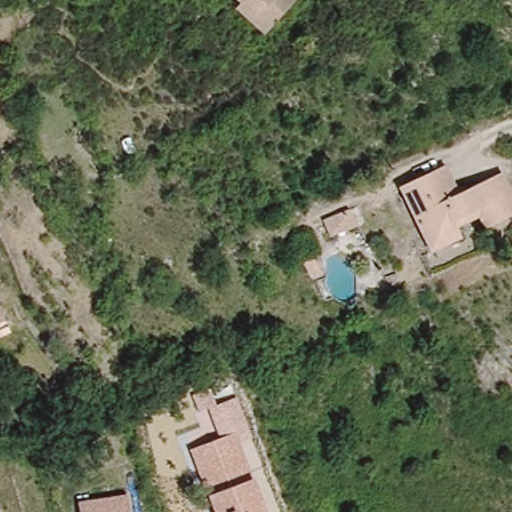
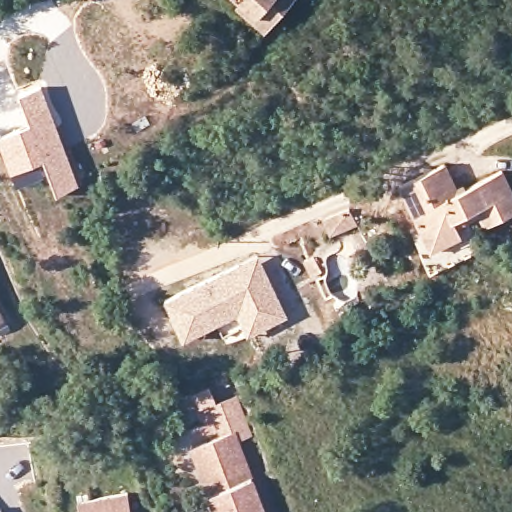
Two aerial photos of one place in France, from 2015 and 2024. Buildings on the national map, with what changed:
unchanged [(270,31),(239,0),(298,0),(270,31)]
new [(78,185),(56,194),(47,171),(15,184),(0,147),(0,135),(28,124),(16,95),(38,86),(78,185)]
unchanged [(424,214),(421,208),(411,212),(397,182),(446,160),(457,187),(503,167),(512,189),(512,209),(486,222),(456,236),(438,244),(424,214)]
new [(353,204),(360,223),(333,233),(326,214),(353,204)]
new [(216,325),(183,341),(164,302),(237,265),(255,256),(260,264),(275,295),(286,316),(247,336),(242,327),(222,337),(216,325)]
new [(323,275),(314,277),(308,260),(317,257),(323,275)]
unchanged [(280,281),(270,284),(265,266),(273,263),(280,281)]
unchanged [(1,325),(0,326),(0,322),(1,325)]
unchanged [(210,387),(216,404),(238,398),(252,437),(240,441),(255,479),(267,512),(213,512),(207,497),(191,449),(220,438),(208,407),(199,411),(192,394),(210,387)]
unchanged [(135,512),(84,512),(82,499),(131,491),(135,512)]
unchanged [(6,512),(0,512),(5,510),(6,512)]

